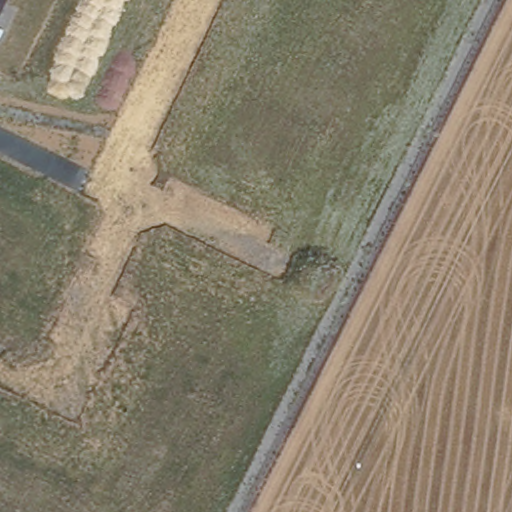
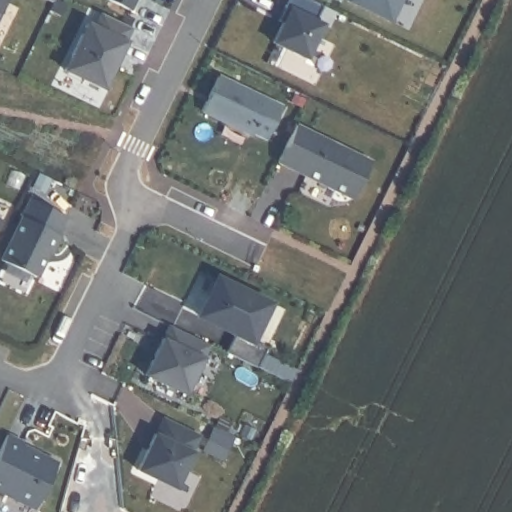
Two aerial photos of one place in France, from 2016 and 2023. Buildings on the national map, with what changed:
unchanged [(0,17),(0,0),(8,0),(0,17)]
new [(129,10),(109,0),(135,0),(129,10)]
new [(322,6),(314,21),(322,25),(305,59),(272,43),(288,10),(284,8),(288,0),(310,0),(322,6)]
new [(391,22),(347,1),(348,0),(402,0),(391,22)]
new [(130,27),(124,41),(125,42),(103,89),(63,70),(86,22),(94,26),(100,13),(130,27)]
new [(281,107),(266,139),(252,132),(251,134),(200,111),(216,77),(281,107)]
new [(277,162),(295,125),(370,162),(352,198),(303,175),(294,170),(277,162)]
new [(29,199),(64,216),(55,235),(58,236),(49,255),(46,253),(35,277),(0,259),(29,199)]
new [(223,352),(233,333),(197,315),(206,296),(208,297),(217,279),(251,296),(250,297),(267,305),(250,340),(266,348),(256,368),(223,352)]
new [(144,375),(168,325),(209,345),(184,394),(144,375)]
new [(191,452),(192,453),(175,488),(137,470),(154,434),(155,435),(162,419),(199,436),(191,452)]
new [(6,435),(22,443),(21,445),(57,463),(34,509),(0,492),(0,448),(6,435)]

